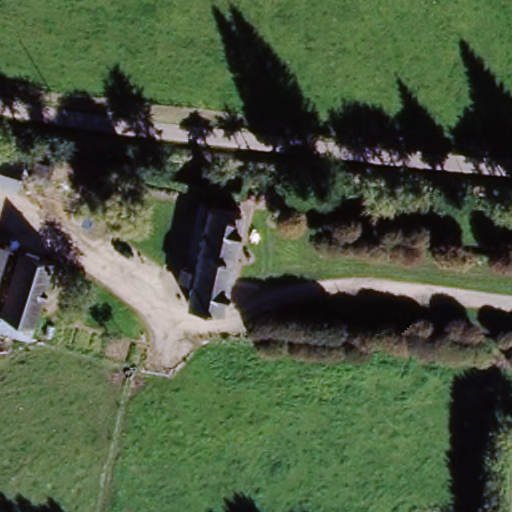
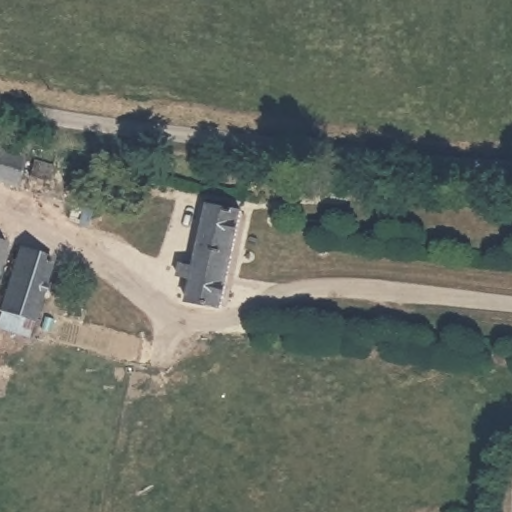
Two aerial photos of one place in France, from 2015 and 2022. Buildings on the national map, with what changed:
unchanged [(10,178),(0,175),(0,146),(19,152),(10,178)]
unchanged [(206,199),(241,207),(220,303),(187,296),(192,276),(175,272),(179,258),(192,261),(206,199)]
unchanged [(0,240),(5,242),(0,256),(0,240)]
unchanged [(0,325),(0,313),(20,246),(54,256),(30,334),(0,325)]

